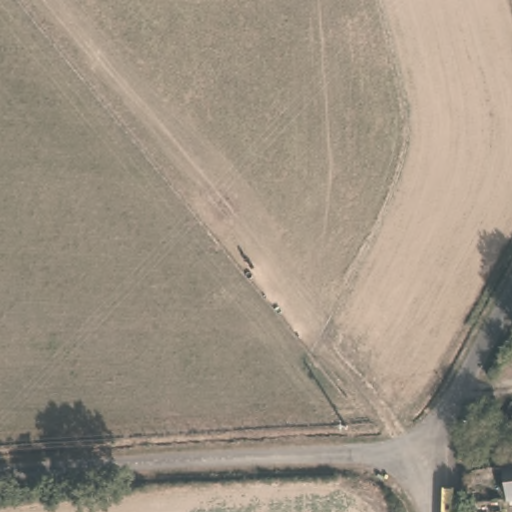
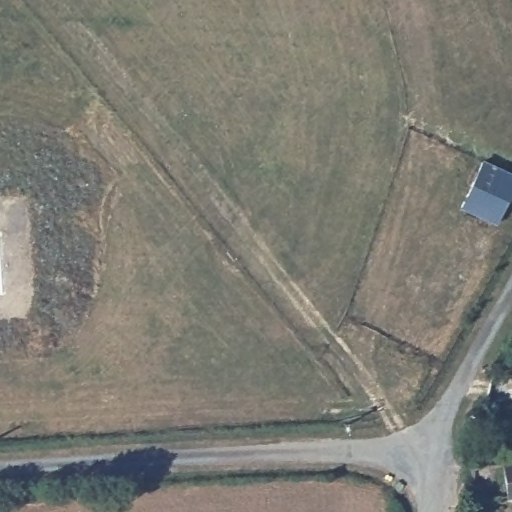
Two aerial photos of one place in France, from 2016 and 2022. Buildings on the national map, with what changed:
new [(481,159),(512,173),(512,189),(496,225),(460,208),(481,159)]
unchanged [(512,494),(505,495),(502,462),(512,461),(512,494)]

